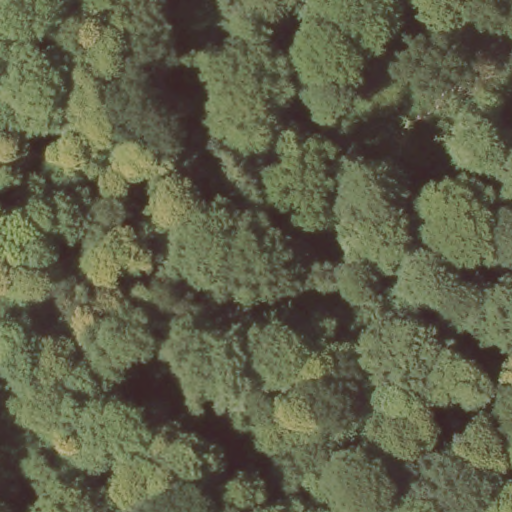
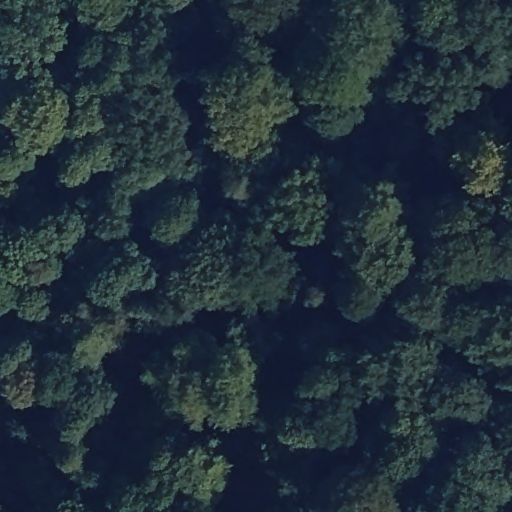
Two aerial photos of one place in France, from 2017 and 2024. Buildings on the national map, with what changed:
unchanged [(77,512),(72,512),(75,509),(77,512)]

